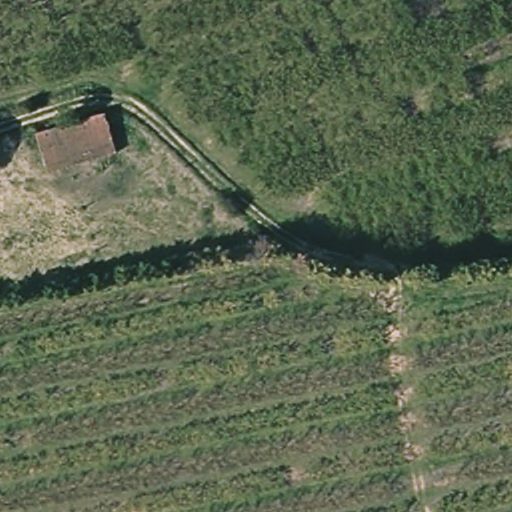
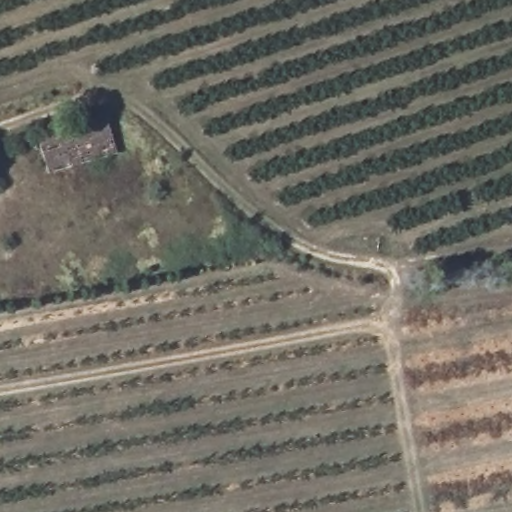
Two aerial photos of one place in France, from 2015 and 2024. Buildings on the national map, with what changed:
unchanged [(28,131),(101,111),(113,164),(42,176),(28,131)]

